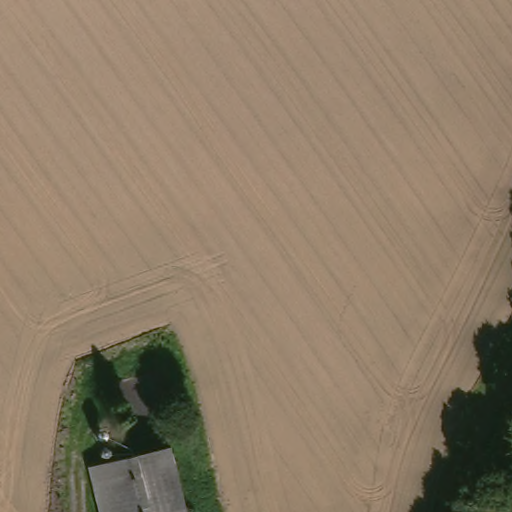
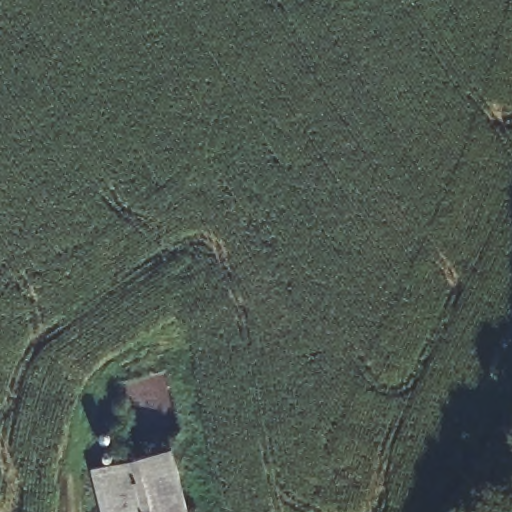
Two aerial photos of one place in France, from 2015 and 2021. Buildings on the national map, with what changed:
unchanged [(91,467),(166,447),(182,512),(103,512),(91,467)]

